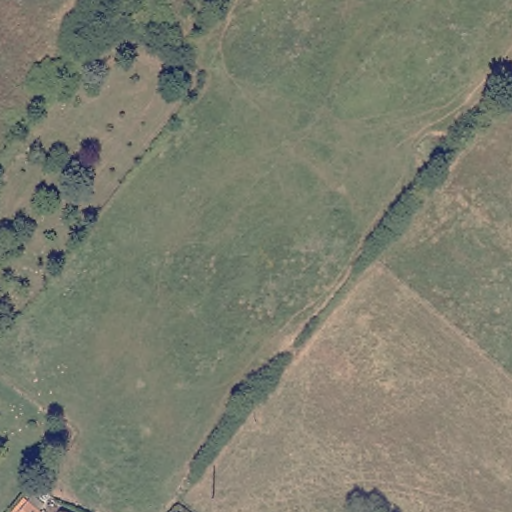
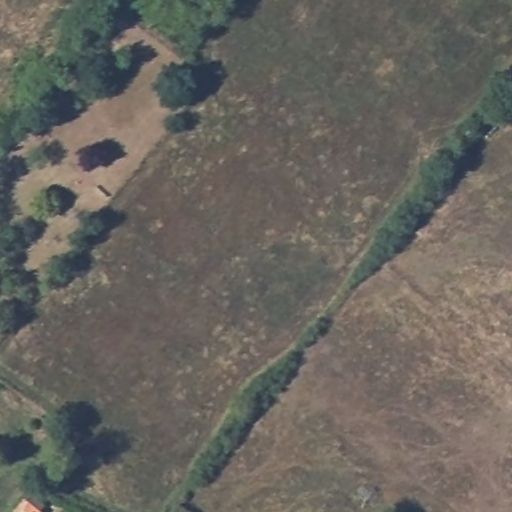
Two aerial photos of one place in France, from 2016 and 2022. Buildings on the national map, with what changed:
unchanged [(29,501),(40,511),(40,512),(21,512),(29,501)]

